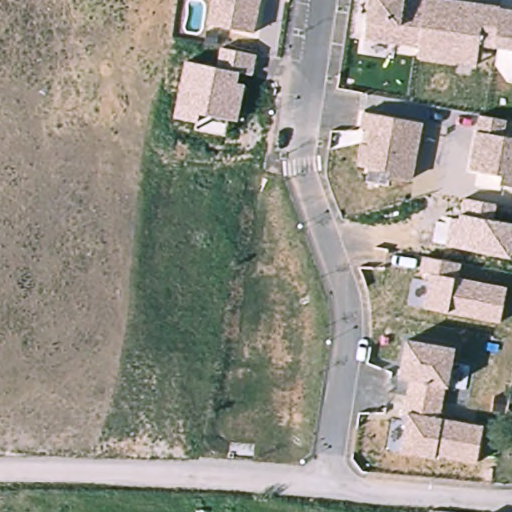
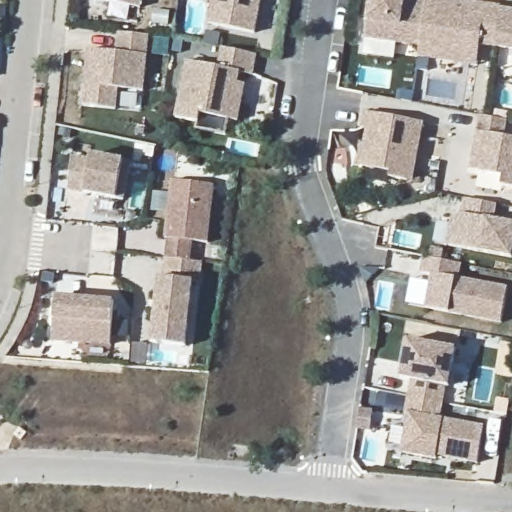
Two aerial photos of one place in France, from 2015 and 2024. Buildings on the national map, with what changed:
new [(96,0),(139,0),(138,7),(96,0)]
unchanged [(210,22),(214,0),(259,0),(253,32),(210,22)]
unchanged [(479,48),(476,65),(419,59),(420,46),(369,39),(369,20),(370,0),(458,0),(512,8),(512,51),(479,48)]
new [(147,55),(144,91),(119,89),(118,109),(82,105),(87,50),(114,52),(118,32),(150,35),(147,55)]
unchanged [(239,72),(237,82),(246,84),(239,124),(200,116),(198,124),(173,118),(185,61),(219,67),(221,49),(258,56),(253,75),(239,72)]
unchanged [(414,177),(356,165),(365,115),(423,124),(414,177)]
unchanged [(502,185),(503,177),(471,168),(477,132),(480,115),(507,121),(506,138),(512,139),(512,186),(502,185)]
new [(72,156),(90,159),(91,154),(130,162),(123,200),(69,190),(72,156)]
new [(170,181),(217,186),(210,241),(193,240),(190,260),(204,262),(202,281),(195,282),(159,277),(164,257),(166,237),(163,237),(170,181)]
unchanged [(512,222),(512,257),(477,251),(446,246),(450,221),(459,222),(460,214),(463,199),(495,206),(498,220),(512,222)]
unchanged [(501,322),(449,312),(423,308),(429,275),(419,273),(423,256),(461,264),(459,279),(507,287),(501,322)]
new [(195,282),(189,347),(147,343),(156,277),(195,282)]
new [(53,341),(56,298),(114,302),(112,345),(53,341)]
unchanged [(444,416),(485,423),(477,462),(438,455),(437,461),(402,454),(413,378),(399,376),(406,339),(456,350),(449,387),(444,416)]

